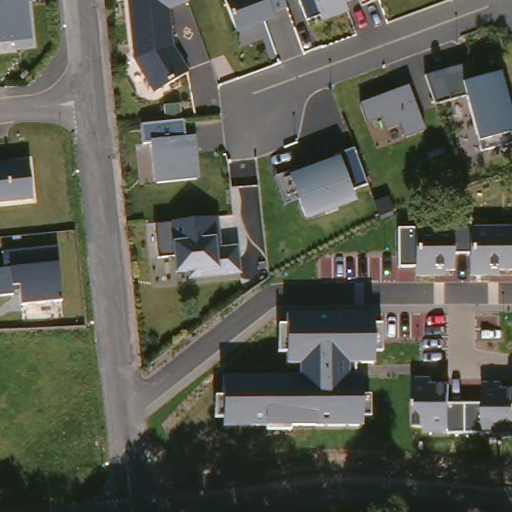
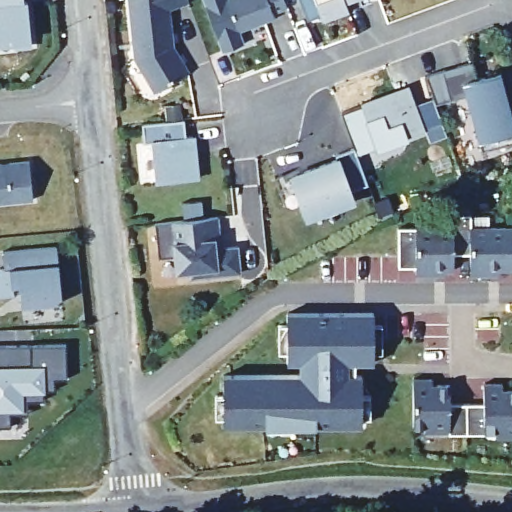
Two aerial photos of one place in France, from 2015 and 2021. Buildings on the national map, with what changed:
unchanged [(0,44),(0,0),(24,0),(28,42),(0,44)]
unchanged [(189,3),(168,11),(170,45),(189,72),(153,94),(131,59),(128,0),(187,0),(189,3)]
unchanged [(288,13),(234,31),(222,0),(283,0),(288,13)]
unchanged [(344,1),(348,9),(318,20),(311,0),(348,0),(344,1)]
unchanged [(477,75),(500,70),(512,122),(512,138),(477,145),(463,95),(448,97),(441,69),(471,61),(477,75)]
unchanged [(406,84),(424,130),(389,144),(379,119),(366,122),(358,101),(406,84)]
unchanged [(184,135),(197,134),(199,179),(153,183),(150,142),(141,142),(140,123),(181,120),(184,135)]
unchanged [(368,184),(354,191),(359,203),(303,225),(294,201),(284,206),(273,174),(289,168),(290,172),(335,156),(334,152),(353,145),(368,184)]
unchanged [(0,205),(0,159),(26,156),(33,201),(0,205)]
unchanged [(416,266),(398,266),(398,227),(452,226),(453,214),(472,212),(472,226),(512,225),(512,270),(499,270),(499,277),(468,276),(469,254),(454,254),(454,271),(445,271),(444,276),(416,276),(416,266)]
unchanged [(222,245),(237,245),(238,272),(187,278),(184,271),(172,272),(169,256),(154,256),(154,220),(217,213),(222,245)]
unchanged [(20,305),(16,294),(0,295),(0,260),(1,258),(1,245),(52,243),(60,303),(20,305)]
unchanged [(223,417),(214,417),(214,395),(223,395),(224,375),(299,375),(299,364),(285,365),(285,351),(278,351),(279,323),(287,323),(287,313),(374,312),(374,323),(382,323),(383,352),(374,352),(374,363),(354,365),(354,373),(363,374),(362,393),(371,395),(370,416),(362,417),(362,426),(224,426),(223,417)]
new [(53,378),(52,388),(45,388),(45,390),(41,391),(41,400),(28,400),(28,412),(9,413),(9,427),(0,428),(0,345),(64,345),(64,378),(53,378)]
unchanged [(424,432),(423,427),(413,427),(414,378),(431,377),(431,383),(451,383),(451,402),(484,404),(484,382),(503,382),(503,388),(512,388),(512,434),(424,432)]

